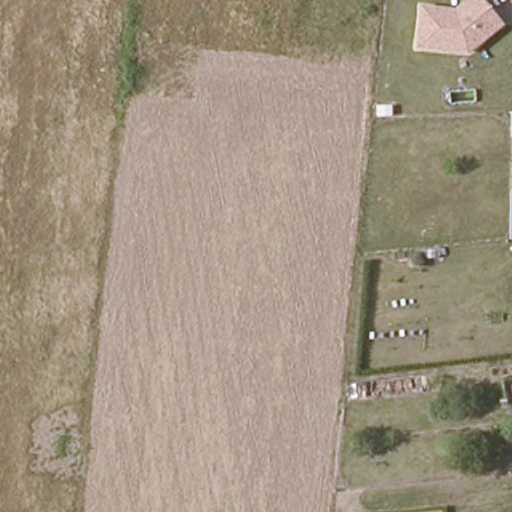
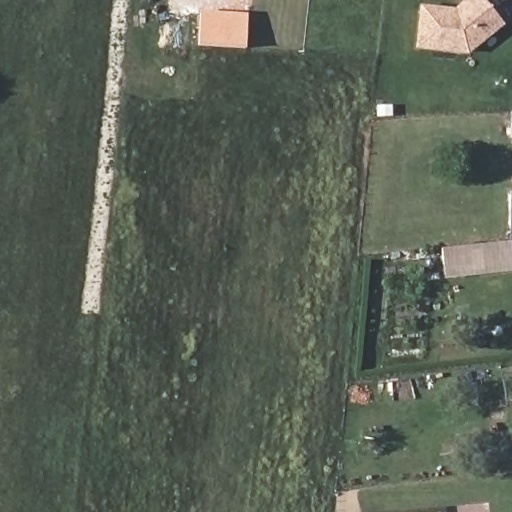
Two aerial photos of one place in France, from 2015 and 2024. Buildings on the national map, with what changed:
unchanged [(483,0),(506,26),(468,53),(416,48),(423,6),(455,9),(466,0),(483,0)]
new [(200,11),(248,13),(246,47),(198,45),(200,11)]
new [(442,248),(512,242),(512,273),(444,279),(442,248)]

